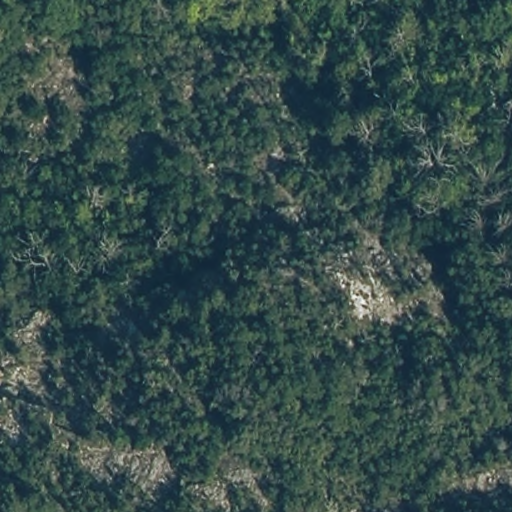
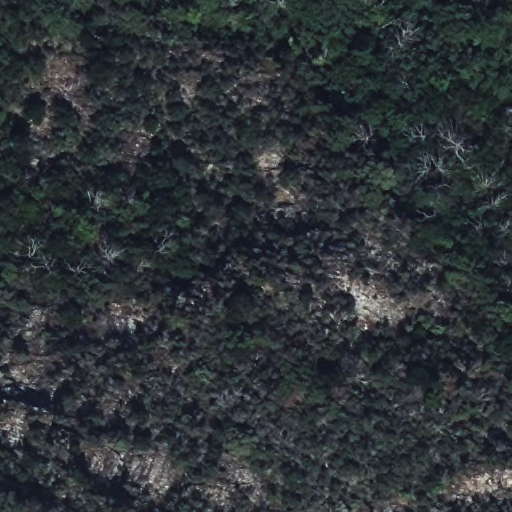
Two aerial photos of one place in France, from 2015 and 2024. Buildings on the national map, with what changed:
[]

